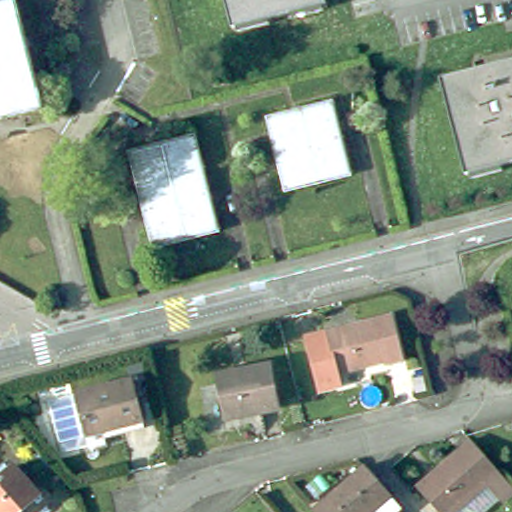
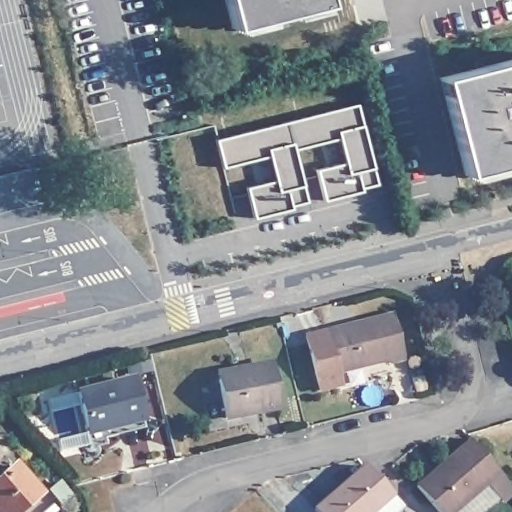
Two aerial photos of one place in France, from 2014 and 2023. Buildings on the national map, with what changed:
demolished [(10,0),(39,110),(0,120),(0,3),(10,0)]
unchanged [(229,24),(223,0),(316,0),(229,24)]
unchanged [(512,161),(468,172),(445,77),(512,60),(512,161)]
demolished [(328,97),(348,173),(283,190),(262,115),(328,97)]
new [(223,166),(216,139),(355,104),(361,125),(371,167),(375,184),(360,187),(360,190),(323,198),(317,170),(345,164),(338,136),(293,147),(302,185),(306,200),(290,204),(291,208),(255,217),(247,187),(273,181),(268,155),(223,166)]
demolished [(192,135),(219,230),(152,249),(126,151),(192,135)]
new [(33,167),(40,202),(0,212),(0,176),(33,167)]
unchanged [(401,361),(387,365),(387,362),(331,375),(323,340),(321,332),(355,325),(390,316),(401,361)]
unchanged [(276,406),(227,418),(218,384),(217,378),(250,370),(267,366),(276,406)]
unchanged [(125,375),(138,424),(101,433),(103,440),(87,445),(74,389),(125,375)]
unchanged [(433,512),(413,490),(466,442),(495,472),(446,512),(433,512)]
unchanged [(375,512),(317,512),(314,508),(365,465),(376,478),(393,496),(375,512)]
unchanged [(33,495),(14,512),(0,512),(0,478),(10,468),(33,495)]

